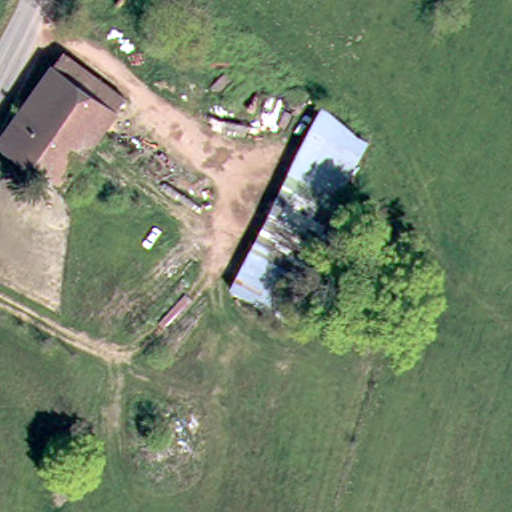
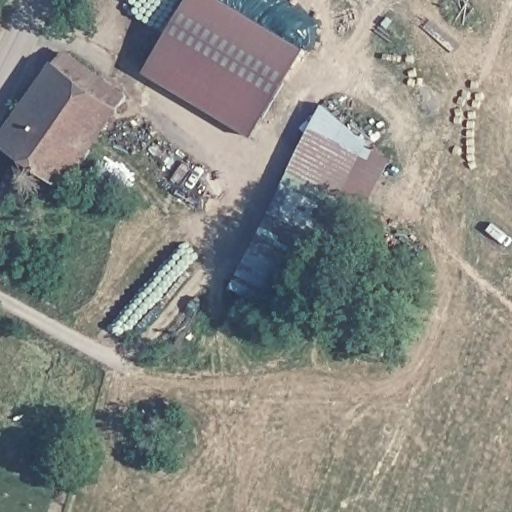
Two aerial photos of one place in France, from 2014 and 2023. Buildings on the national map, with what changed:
new [(188,0),(225,0),(306,49),(253,137),(145,72),(188,0)]
unchanged [(120,118),(61,75),(69,61),(126,101),(130,104),(120,118)]
unchanged [(69,193),(4,148),(57,72),(61,75),(120,118),(82,174),(69,193)]
unchanged [(331,107),(379,133),(375,143),(315,249),(268,224),(326,117),(331,107)]
unchanged [(273,324),(227,298),(268,224),(315,249),(273,324)]

